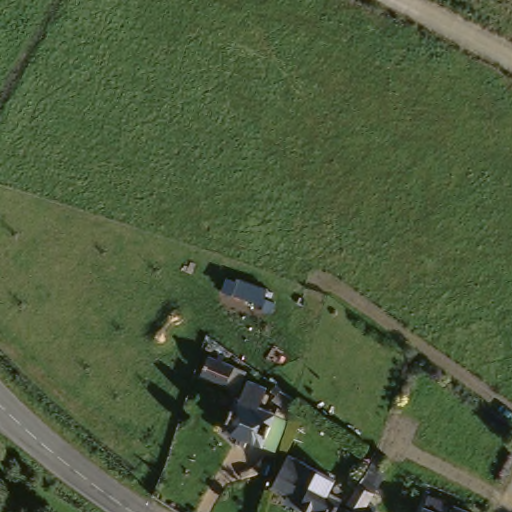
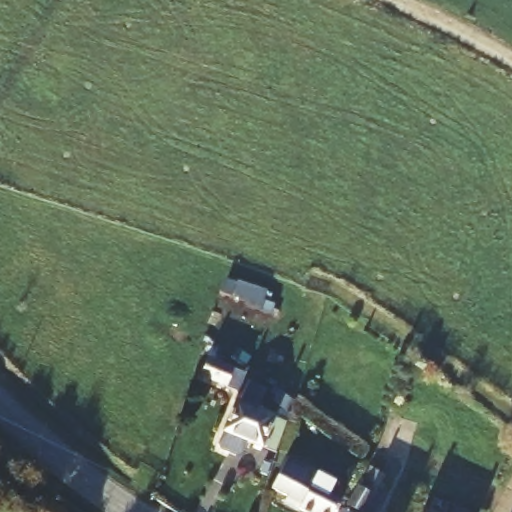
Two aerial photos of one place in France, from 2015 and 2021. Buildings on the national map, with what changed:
unchanged [(206,374),(211,358),(248,371),(243,384),(262,390),(256,409),(274,416),(264,447),(226,434),(242,386),(206,374)]
unchanged [(317,512),(306,507),(309,501),(279,489),(293,456),(341,476),(336,489),(349,496),(342,512),(317,512)]
unchanged [(444,512),(451,500),(476,511),(475,512),(444,512)]
unchanged [(444,512),(422,512),(426,505),(444,512)]
unchanged [(354,512),(346,512),(348,509),(354,512)]

